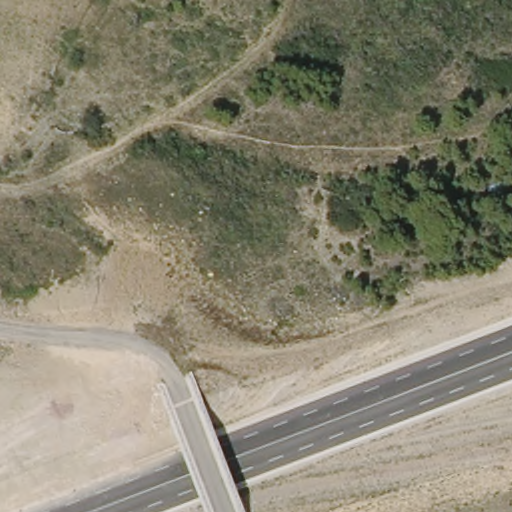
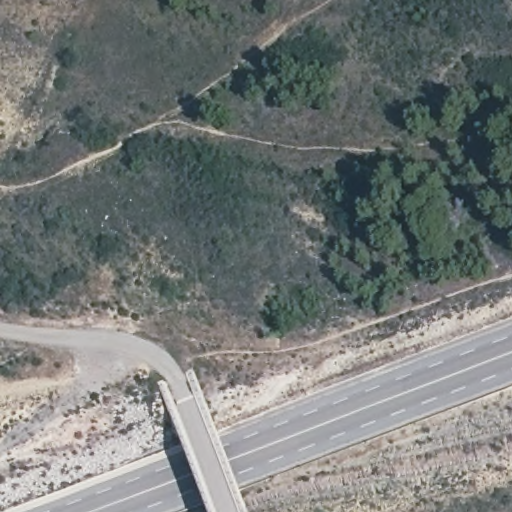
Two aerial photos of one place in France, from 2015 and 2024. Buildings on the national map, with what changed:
[]

